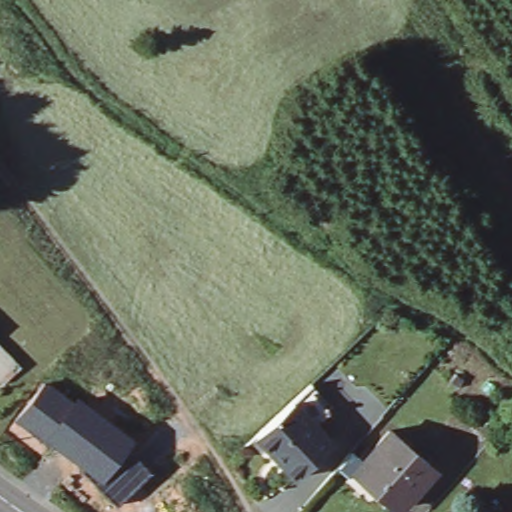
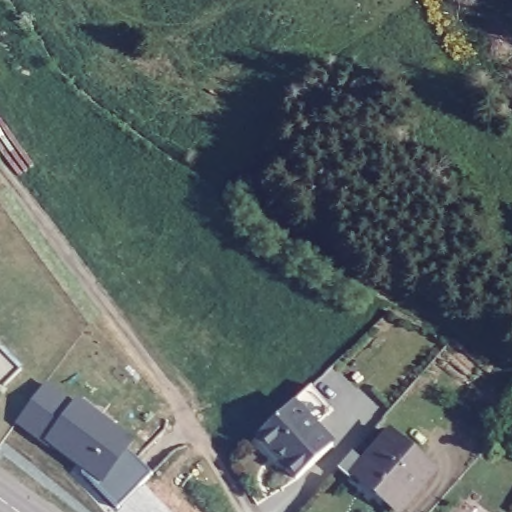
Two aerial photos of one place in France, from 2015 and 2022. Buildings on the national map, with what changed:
unchanged [(80,470),(89,457),(54,431),(47,440),(17,418),(41,385),(71,405),(69,407),(106,435),(114,428),(129,442),(125,446),(149,470),(117,506),(80,470)]
unchanged [(307,385),(330,408),(316,421),(333,439),(296,474),(257,433),(307,385)]
unchanged [(405,499),(393,509),(378,492),(377,491),(380,489),(360,467),(365,462),(400,431),(435,471),(439,476),(426,487),(417,496),(409,503),(405,499)]

